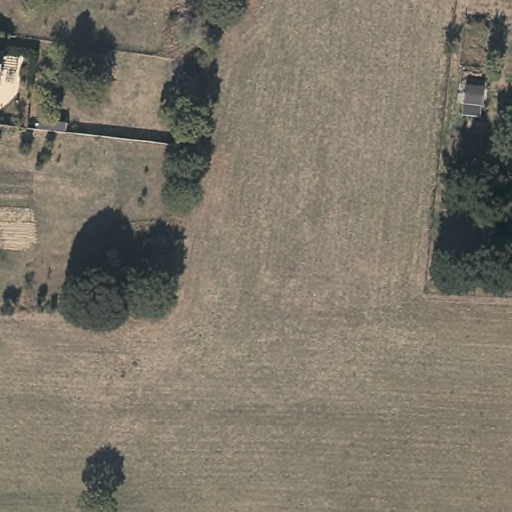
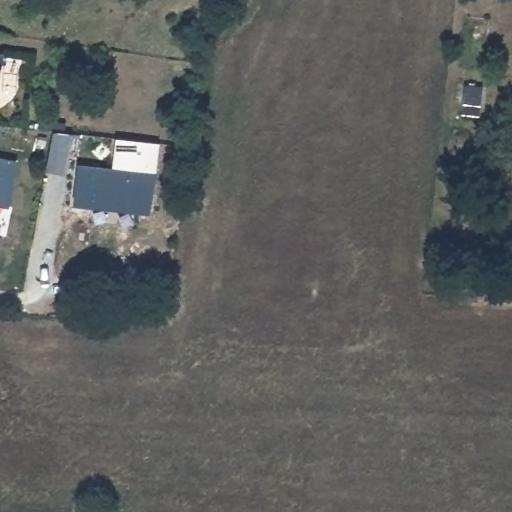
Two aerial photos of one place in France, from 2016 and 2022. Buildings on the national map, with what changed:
unchanged [(5,53),(0,84),(0,52),(5,53)]
new [(72,204),(77,164),(112,168),(115,136),(163,142),(160,174),(153,173),(149,213),(72,204)]
new [(14,163),(7,207),(0,206),(0,160),(14,163)]

